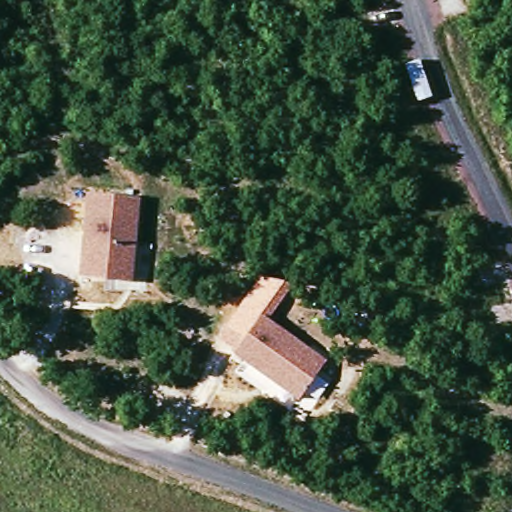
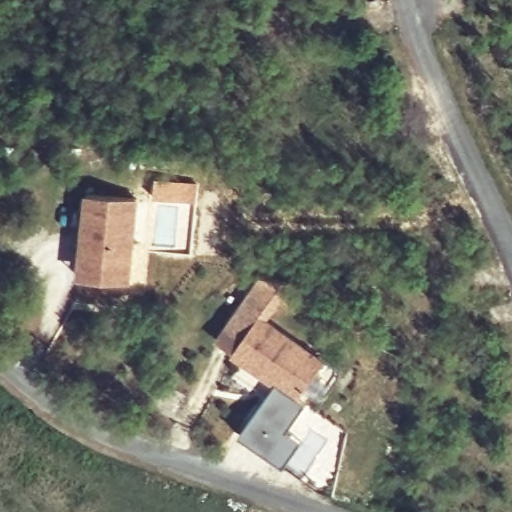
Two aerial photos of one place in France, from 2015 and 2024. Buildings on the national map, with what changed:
unchanged [(130,281),(81,276),(88,191),(138,195),(130,281)]
unchanged [(259,318),(237,350),(219,337),(259,277),(292,284),(266,323),(259,318)]
unchanged [(249,363),(247,365),(234,355),(259,318),(324,363),(297,400),(274,383),(276,381),(249,363)]
new [(297,400),(305,404),(286,430),(301,441),(283,465),(240,435),(276,385),(297,400)]

